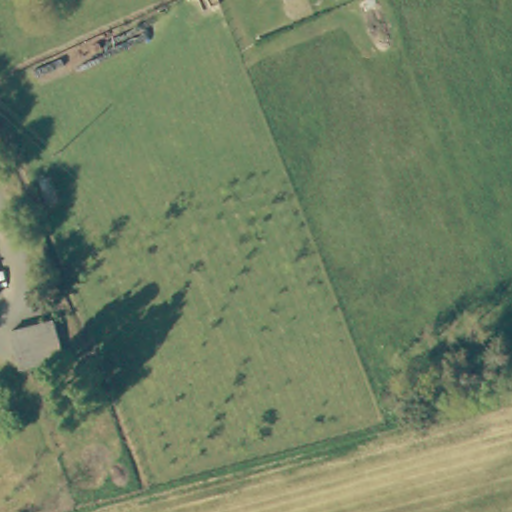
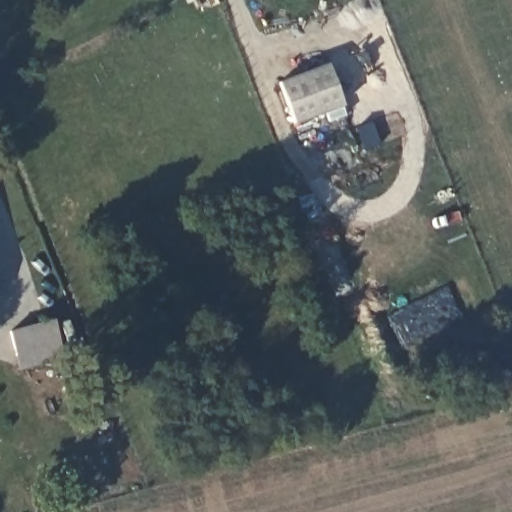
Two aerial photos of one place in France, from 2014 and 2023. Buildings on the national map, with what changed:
new [(296,125),(279,84),(330,64),(346,105),(296,125)]
unchanged [(64,350),(21,363),(19,356),(15,340),(59,326),(64,350)]

